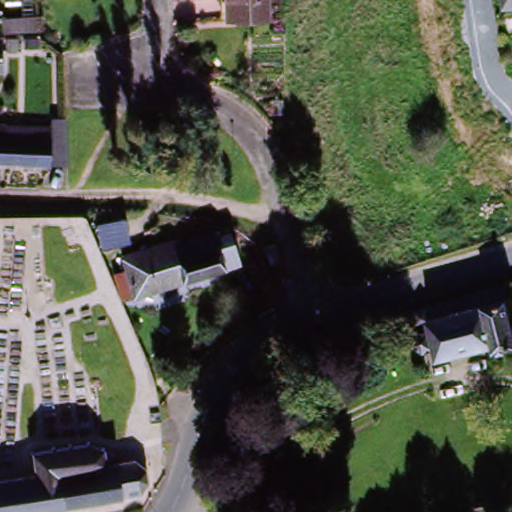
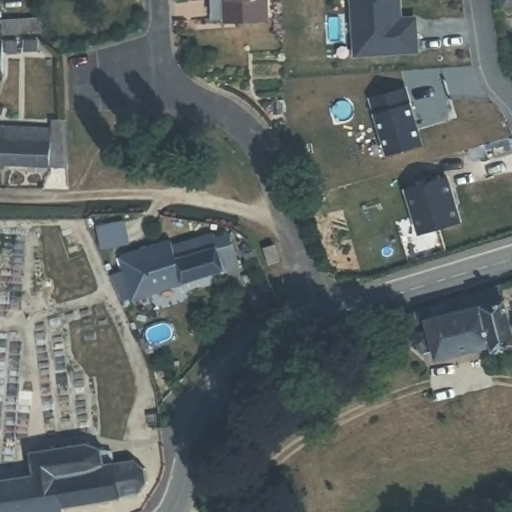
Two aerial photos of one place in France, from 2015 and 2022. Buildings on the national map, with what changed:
unchanged [(229,22),(227,0),(263,0),(264,20),(229,22)]
new [(416,16),(420,54),(353,59),(349,0),(402,0),(403,17),(416,16)]
unchanged [(512,0),(512,2),(506,3),(506,0),(512,0)]
unchanged [(28,23),(28,36),(2,36),(0,36),(0,24),(28,23)]
unchanged [(2,36),(2,79),(0,78),(0,36),(2,36)]
unchanged [(27,54),(9,54),(8,42),(27,42),(27,54)]
new [(369,99),(406,86),(423,145),(386,156),(369,99)]
unchanged [(0,170),(0,128),(52,127),(52,109),(69,108),(69,114),(70,160),(53,160),(54,169),(0,170)]
new [(449,176),(463,224),(417,236),(403,191),(449,176)]
unchanged [(131,235),(116,243),(100,202),(120,201),(131,235)]
unchanged [(127,294),(116,260),(179,242),(181,250),(186,278),(127,294)]
unchanged [(243,266),(186,278),(181,250),(215,245),(239,242),(243,266)]
new [(277,265),(267,267),(262,252),(273,248),(277,265)]
unchanged [(428,346),(435,346),(440,342),(442,341),(442,336),(441,330),(428,332),(426,333),(423,323),(422,321),(421,320),(460,310),(500,301),(512,298),(512,363),(504,365),(502,365),(500,360),(482,362),(451,365),(444,357),(429,359),(428,346)]
unchanged [(137,457),(147,497),(72,512),(0,512),(0,484),(30,478),(27,452),(98,438),(101,463),(137,457)]

